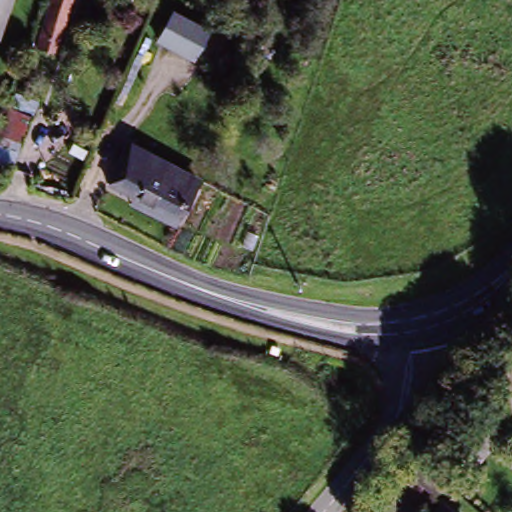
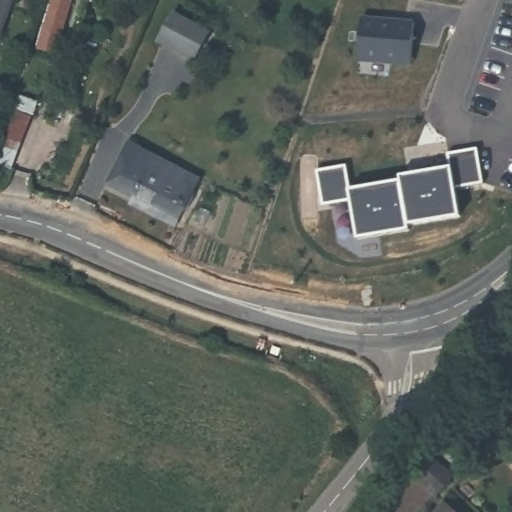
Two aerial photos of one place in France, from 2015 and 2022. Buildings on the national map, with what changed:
unchanged [(16,0),(4,34),(0,43),(0,0),(16,0)]
unchanged [(60,52),(45,47),(60,0),(74,0),(76,0),(60,52)]
unchanged [(204,38),(190,64),(155,45),(169,19),(204,38)]
unchanged [(30,119),(21,142),(0,135),(10,111),(30,119)]
unchanged [(188,214),(181,211),(175,222),(108,186),(129,148),(196,184),(190,194),(197,197),(188,214)]
new [(351,202),(322,206),(316,171),(346,166),(350,190),(400,182),(400,177),(450,168),(448,154),(477,149),(483,185),(455,189),(460,217),(408,226),(409,231),(357,240),(351,202)]
unchanged [(502,440),(482,463),(467,448),(487,427),(502,440)]
unchanged [(451,497),(430,477),(427,474),(442,453),(447,458),(468,478),(451,497)]
unchanged [(447,505),(454,512),(441,512),(447,505)]

